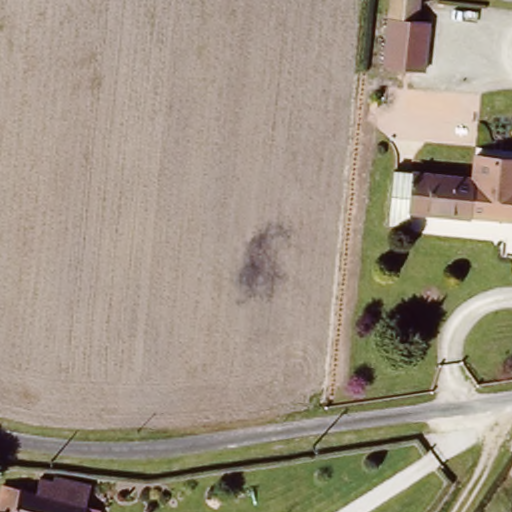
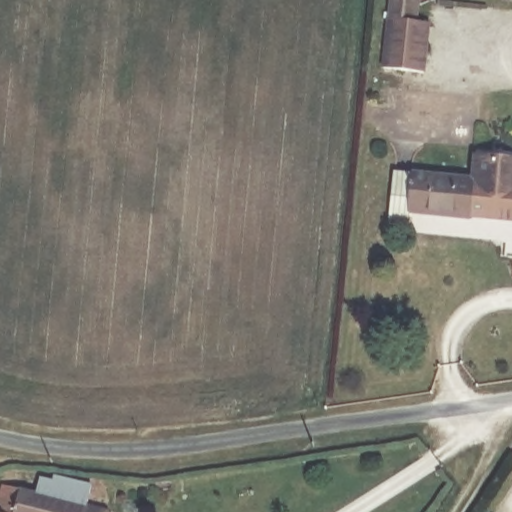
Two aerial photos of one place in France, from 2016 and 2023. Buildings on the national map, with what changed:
unchanged [(427,70),(377,67),(385,15),(429,19),(427,70)]
unchanged [(475,176),(477,156),(512,159),(512,219),(412,210),(411,222),(391,220),(396,169),(475,176)]
unchanged [(1,478),(48,492),(55,471),(90,482),(84,502),(99,507),(98,512),(0,512),(0,482),(1,478)]

